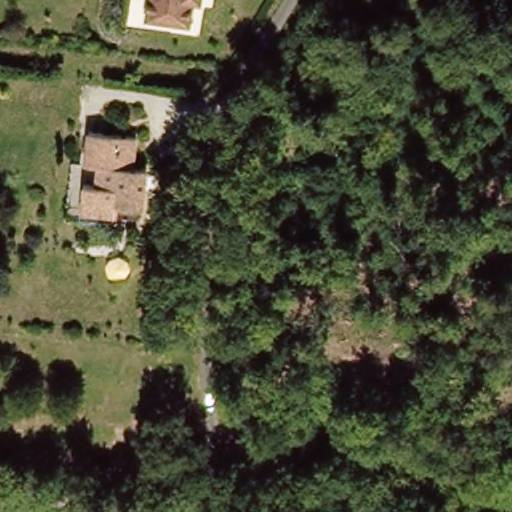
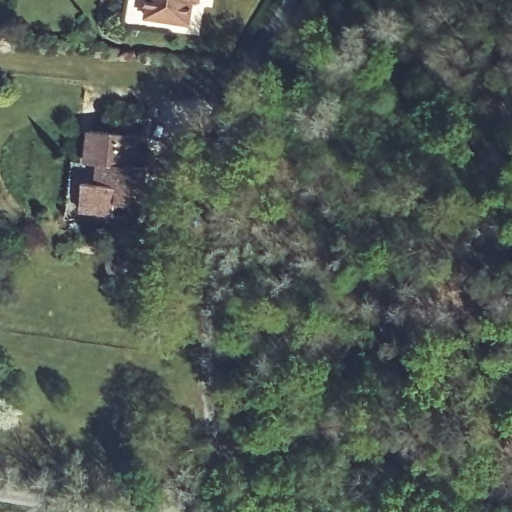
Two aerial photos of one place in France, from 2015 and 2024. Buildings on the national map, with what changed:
unchanged [(195,23),(152,16),(154,0),(199,0),(195,23)]
unchanged [(85,187),(98,188),(100,168),(87,167),(89,135),(135,139),(133,169),(148,171),(145,198),(85,192),(85,187)]
unchanged [(145,198),(144,208),(120,206),(120,217),(83,215),(85,192),(145,198)]

